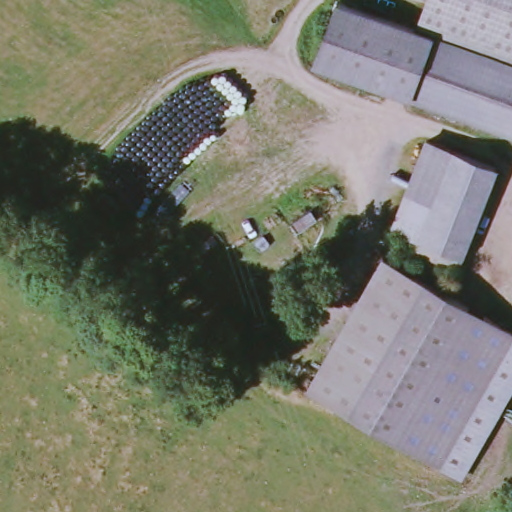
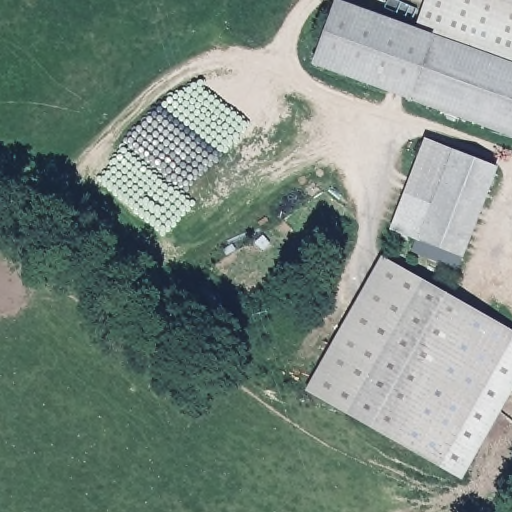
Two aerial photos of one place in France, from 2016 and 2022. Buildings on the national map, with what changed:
unchanged [(412,98),(433,35),(420,31),(431,0),(512,0),(512,132),(412,98)]
unchanged [(318,66),(340,4),(420,31),(433,35),(412,98),(318,66)]
unchanged [(448,141),(489,155),(455,246),(448,266),(407,245),(412,229),(448,141)]
unchanged [(314,394),(388,260),(428,282),(512,330),(512,390),(463,476),(354,416),(314,394)]

